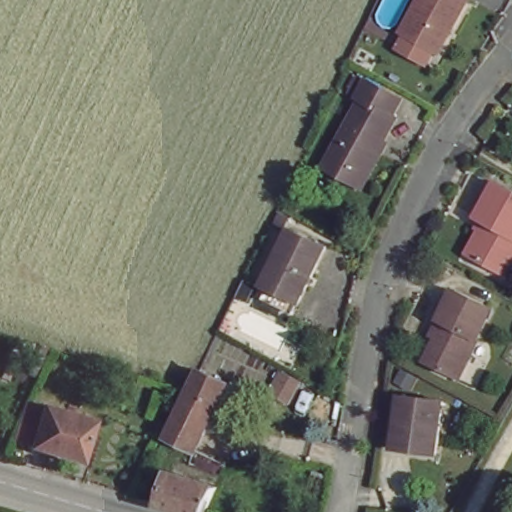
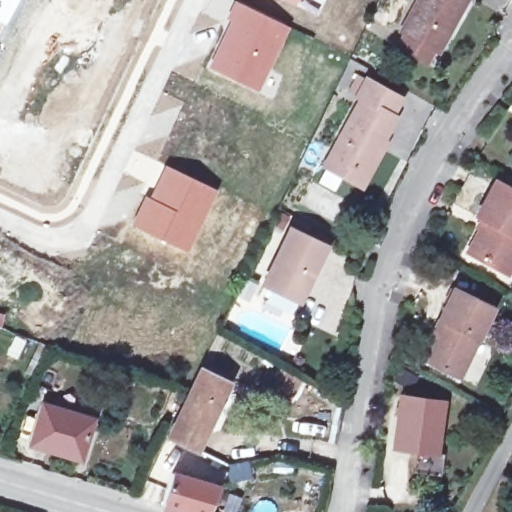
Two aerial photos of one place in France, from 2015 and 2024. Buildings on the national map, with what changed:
new [(1,22),(0,22),(0,0),(12,0),(1,22)]
new [(234,0),(235,0),(289,25),(278,51),(280,52),(259,93),(206,67),(234,0)]
new [(292,3),(285,0),(294,0),(292,3)]
unchanged [(430,54),(394,34),(413,0),(460,0),(430,54)]
new [(0,24),(0,22),(1,22),(0,24)]
unchanged [(395,104),(387,119),(392,122),(364,173),(330,154),(358,105),(352,102),(361,86),(395,104)]
new [(145,194),(148,196),(165,163),(217,188),(187,251),(130,224),(145,194)]
unchanged [(512,191),(512,254),(507,251),(499,267),(467,248),(484,219),(475,213),(494,181),(512,191)]
unchanged [(257,293),(263,279),(290,223),(327,241),(301,297),(294,311),(257,293)]
unchanged [(495,310),(457,375),(427,358),(450,320),(444,316),(460,290),(495,310)]
new [(1,328),(0,328),(0,312),(6,313),(1,328)]
unchanged [(226,382),(191,451),(186,448),(165,438),(192,385),(200,369),(226,382)]
unchanged [(444,400),(437,455),(395,451),(402,396),(444,400)]
unchanged [(92,420),(81,458),(31,442),(43,405),(92,420)]
unchanged [(204,512),(184,512),(162,505),(171,475),(213,486),(204,512)]

